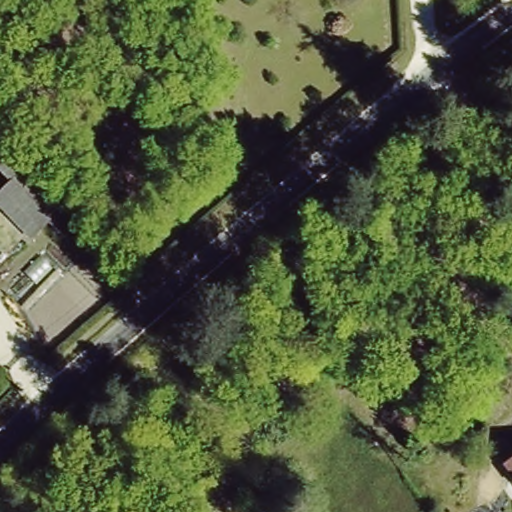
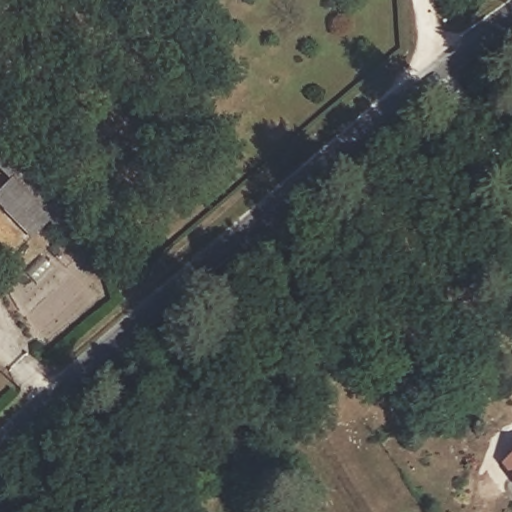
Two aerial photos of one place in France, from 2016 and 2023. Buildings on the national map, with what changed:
unchanged [(33,232),(0,203),(0,185),(12,173),(0,163),(0,142),(5,137),(71,192),(33,232)]
unchanged [(502,460),(512,452),(512,474),(502,460)]

